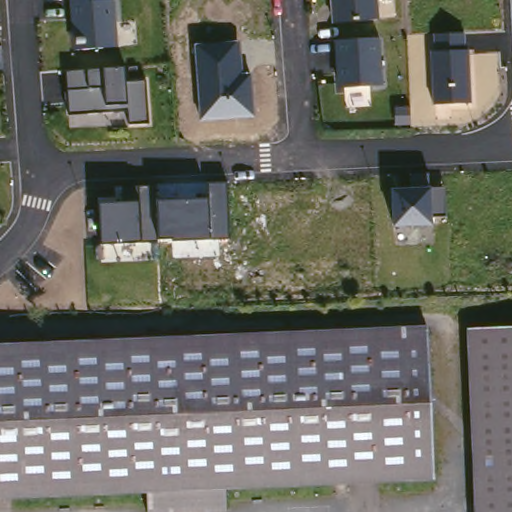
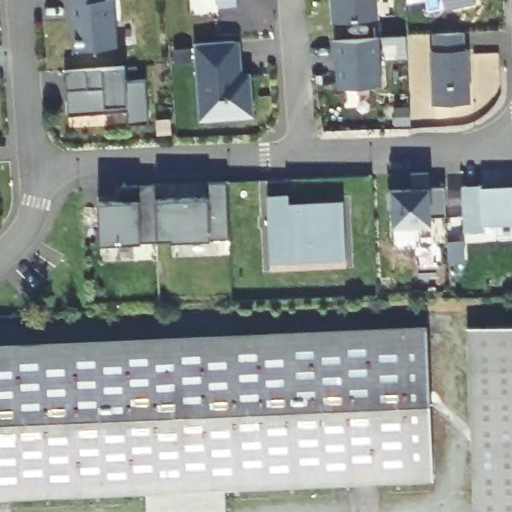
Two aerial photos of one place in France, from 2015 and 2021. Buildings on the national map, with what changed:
unchanged [(65,0),(111,0),(116,48),(69,49),(65,0)]
unchanged [(328,0),(374,0),(376,19),(331,24),(328,0)]
unchanged [(436,105),(433,38),(464,35),(466,51),(469,50),(472,103),(436,105)]
unchanged [(330,42),(377,38),(381,87),(334,89),(330,42)]
unchanged [(201,121),(196,47),(240,44),(243,80),(253,78),(255,118),(201,121)]
unchanged [(128,82),(148,81),(152,126),(131,127),(130,114),(71,118),(68,72),(128,67),(128,82)]
unchanged [(230,238),(211,239),(161,241),(141,241),(101,244),(99,205),(139,202),(139,188),(158,187),(158,202),(209,197),(209,184),(227,183),(230,238)]
new [(486,185),(486,187),(512,186),(512,222),(487,224),(488,230),(468,230),(466,185),(486,185)]
unchanged [(448,187),(446,216),(433,217),(433,227),(393,228),(392,189),(429,187),(448,187)]
new [(271,262),(268,197),(289,197),(290,206),(343,204),(346,261),(271,262)]
unchanged [(512,322),(512,512),(476,512),(468,324),(512,322)]
unchanged [(428,483),(218,492),(219,512),(141,512),(140,496),(0,502),(0,352),(421,333),(428,483)]

